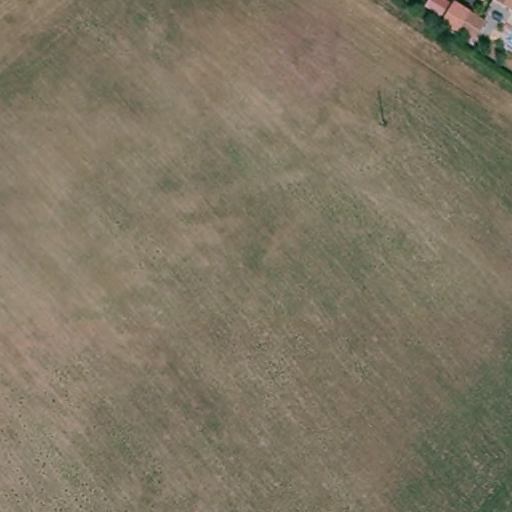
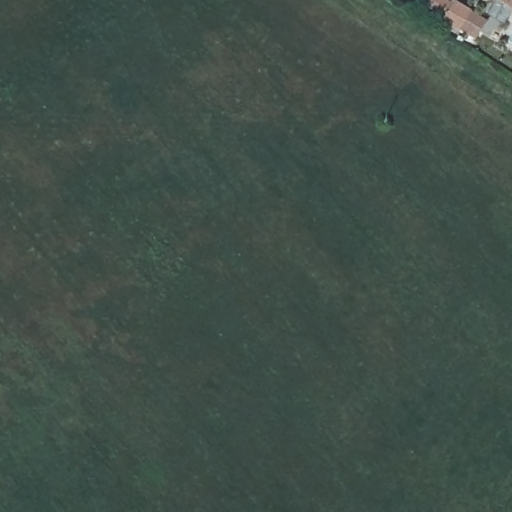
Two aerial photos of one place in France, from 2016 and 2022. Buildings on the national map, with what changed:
unchanged [(512,6),(502,0),(512,0),(512,6)]
unchanged [(473,39),(458,29),(468,12),(483,22),(473,39)]

